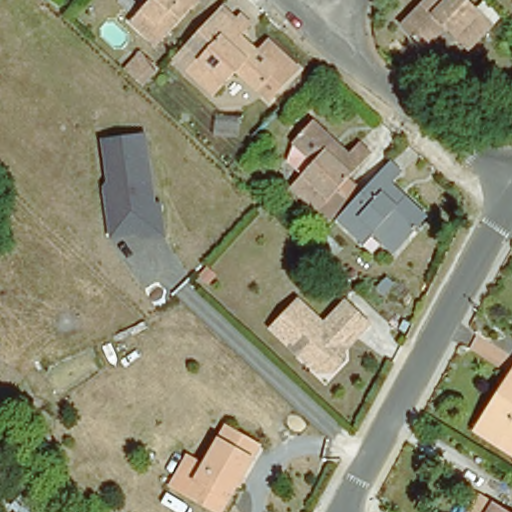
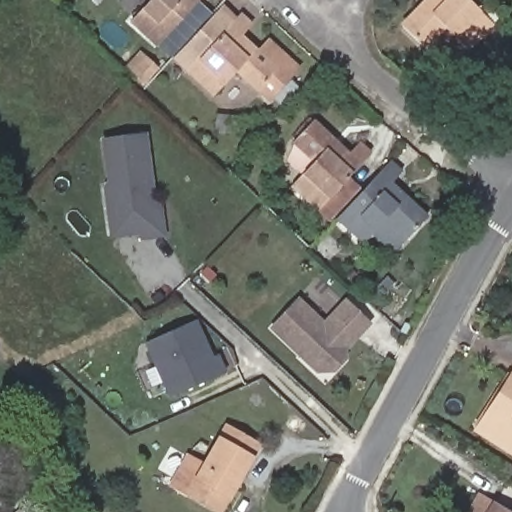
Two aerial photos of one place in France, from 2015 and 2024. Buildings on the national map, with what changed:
unchanged [(130,19),(148,0),(198,0),(155,43),(130,19)]
unchanged [(424,47),(401,24),(425,0),(469,0),(492,23),(466,48),(444,26),(424,47)]
unchanged [(217,3),(230,17),(186,63),(172,49),(217,3)]
unchanged [(230,17),(240,8),(250,18),(240,29),(258,47),(269,35),(298,63),(268,94),(237,65),(215,89),(186,63),(230,17)]
unchanged [(141,87),(123,70),(140,52),(159,69),(141,87)]
unchanged [(409,78),(407,77),(405,75),(417,61),(430,72),(420,86),(409,78)]
unchanged [(330,215),(317,203),(292,179),(315,156),(292,135),(312,114),(347,149),(360,137),(371,148),(336,183),(349,196),(330,215)]
unchanged [(156,203),(165,202),(169,237),(139,241),(139,233),(111,236),(101,138),(148,133),(156,203)]
unchanged [(403,166),(391,178),(426,211),(406,232),(403,230),(392,242),(374,224),(362,236),(336,212),(391,154),(403,166)]
unchanged [(328,256),(316,244),(327,232),(340,244),(328,256)]
unchanged [(271,322),(296,295),(322,319),(343,297),(366,319),(355,330),(353,328),(341,340),(341,353),(330,364),(315,365),(297,348),(271,322)]
new [(196,321),(214,360),(219,358),(226,373),(171,398),(146,343),(196,321)]
unchanged [(512,363),(512,449),(472,424),(512,363)]
unchanged [(182,489),(222,422),(250,438),(255,441),(247,455),(215,508),(182,489)]
unchanged [(0,486),(24,512),(0,512),(0,486)]
unchanged [(476,498),(493,509),(498,512),(469,512),(476,498)]

